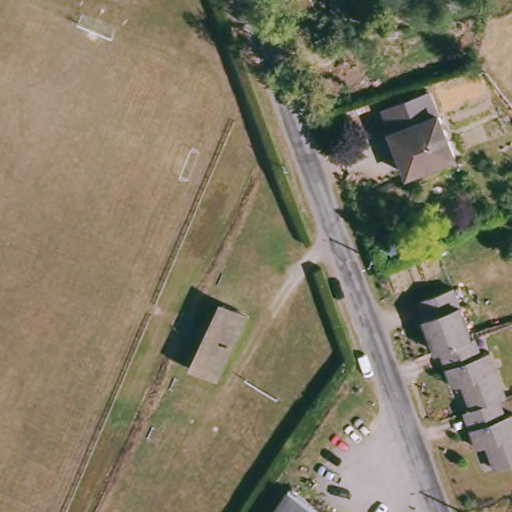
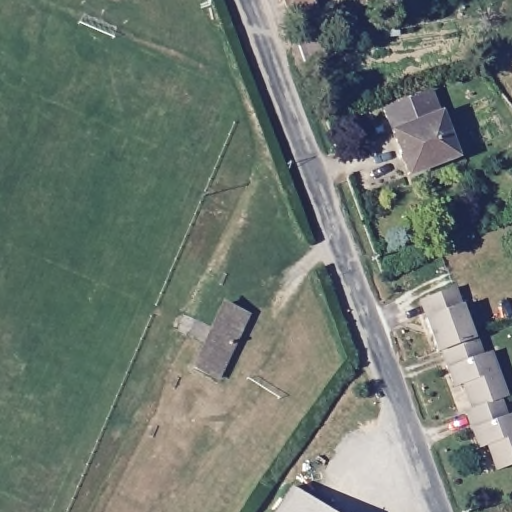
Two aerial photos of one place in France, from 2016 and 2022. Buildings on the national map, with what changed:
unchanged [(310,0),(314,13),(286,23),(278,0),(310,0)]
unchanged [(406,136),(402,136),(392,110),(438,95),(460,159),(420,175),(406,136)]
unchanged [(483,352),(496,349),(512,393),(512,400),(508,403),(512,412),(512,469),(506,471),(497,447),(490,449),(477,413),(484,410),(473,383),(463,387),(443,333),(437,334),(427,301),(458,289),(483,352)]
unchanged [(220,383),(196,371),(224,308),(249,319),(220,383)]
unchanged [(299,491),(331,512),(285,512),(299,491)]

